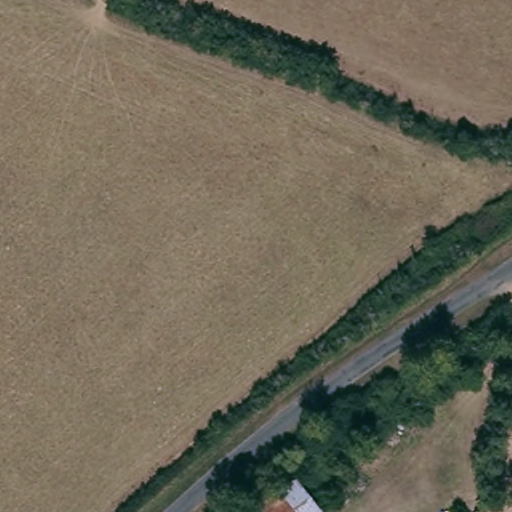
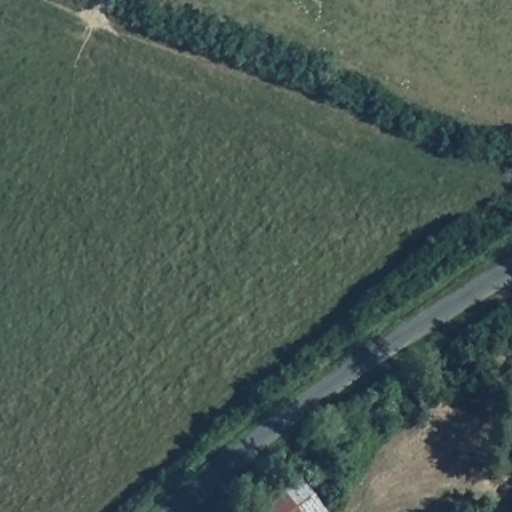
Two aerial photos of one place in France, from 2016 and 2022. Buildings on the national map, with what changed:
unchanged [(312,512),(257,512),(290,485),(312,512)]

